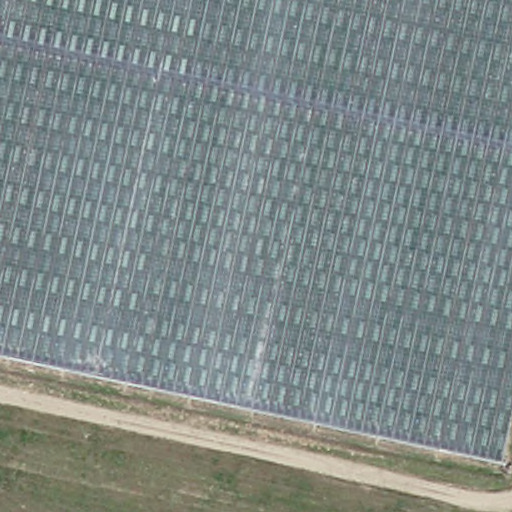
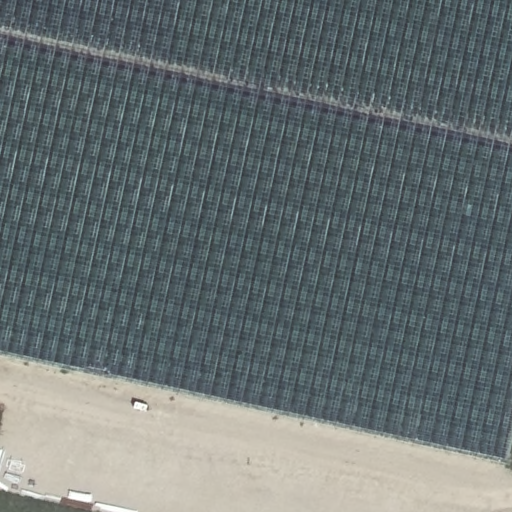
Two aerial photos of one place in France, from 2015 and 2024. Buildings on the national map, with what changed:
unchanged [(489,453),(0,349),(0,0),(512,0),(512,348),(489,453)]

